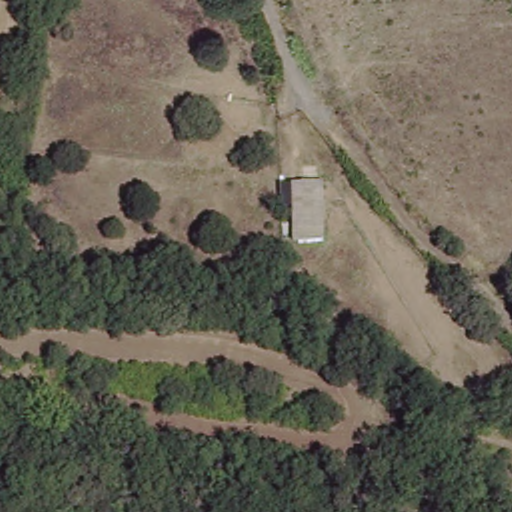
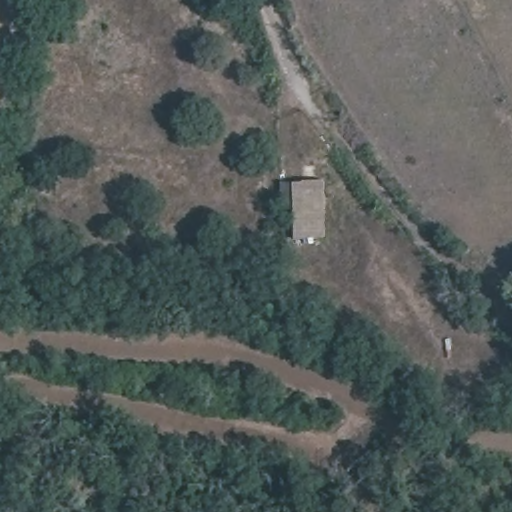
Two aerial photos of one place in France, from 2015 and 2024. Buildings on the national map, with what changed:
unchanged [(326,180),(328,240),(283,241),(284,226),(294,226),(294,182),(326,180)]

